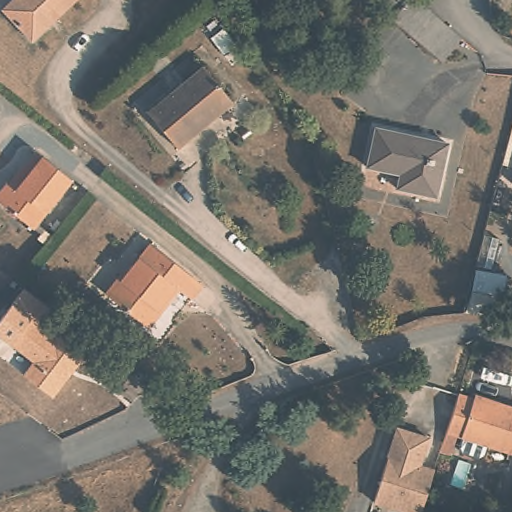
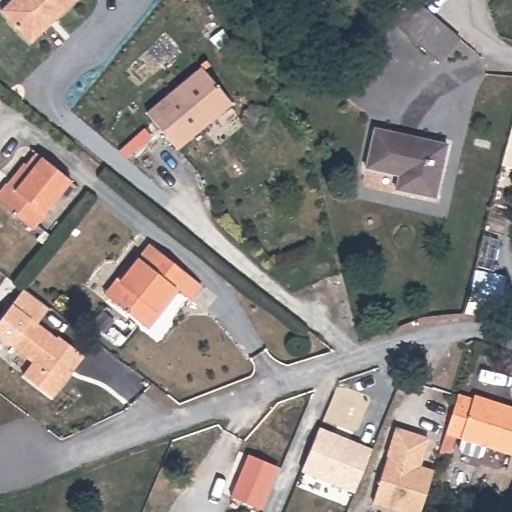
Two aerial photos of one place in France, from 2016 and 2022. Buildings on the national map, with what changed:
unchanged [(20,0),(74,0),(39,46),(4,20),(20,0)]
unchanged [(433,53),(385,16),(398,0),(415,0),(453,29),(433,53)]
unchanged [(228,91),(184,148),(149,120),(193,63),(228,91)]
unchanged [(444,145),(434,196),(397,188),(399,174),(366,166),(374,131),(444,145)]
unchanged [(73,178),(34,227),(0,200),(0,195),(9,183),(12,184),(40,151),(73,178)]
unchanged [(512,177),(512,183),(510,183),(512,177)]
unchanged [(494,273),(506,274),(498,316),(466,313),(483,234),(501,238),(494,273)]
unchanged [(202,283),(190,299),(175,287),(156,312),(159,314),(147,328),(109,299),(152,246),(202,283)]
unchanged [(50,308),(39,322),(84,354),(53,395),(25,373),(30,366),(0,342),(0,319),(23,288),(50,308)]
unchanged [(497,400),(512,405),(512,449),(458,434),(453,453),(440,452),(457,393),(495,404),(497,400)]
new [(319,427),(373,448),(355,493),(301,473),(319,427)]
unchanged [(426,512),(402,512),(377,505),(398,432),(429,441),(422,468),(438,474),(426,512)]
new [(248,454),(280,467),(263,511),(230,496),(248,454)]

